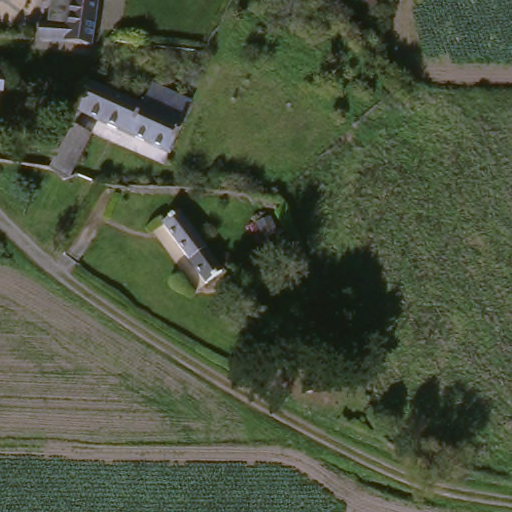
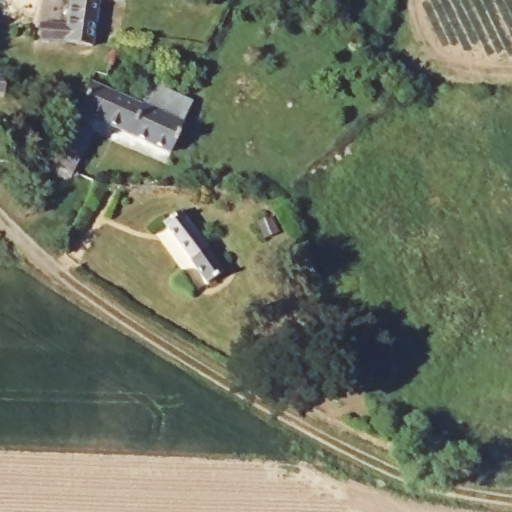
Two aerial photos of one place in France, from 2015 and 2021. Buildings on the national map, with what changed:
unchanged [(10,96),(0,94),(0,76),(5,77),(10,96)]
unchanged [(186,127),(170,154),(79,111),(94,82),(186,127)]
unchanged [(83,135),(67,165),(45,155),(62,125),(83,135)]
unchanged [(188,212),(227,267),(210,278),(172,224),(188,212)]

